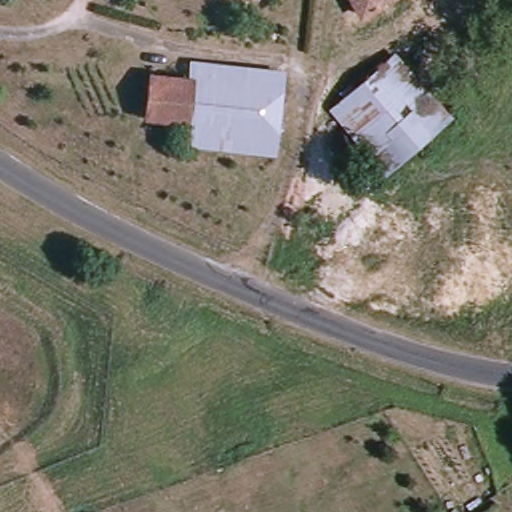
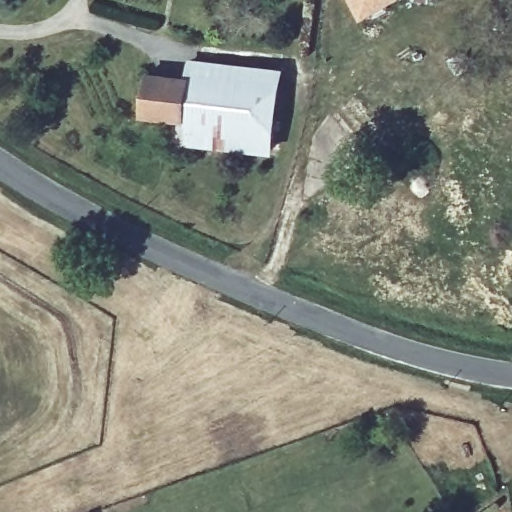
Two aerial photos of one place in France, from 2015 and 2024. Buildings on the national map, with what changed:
unchanged [(371,22),(359,0),(403,0),(406,4),(371,22)]
demolished [(448,119),(388,173),(332,110),(391,58),(396,64),(414,47),(442,78),(425,93),(448,119)]
unchanged [(189,81),(191,66),(276,76),(267,152),(182,142),(185,121),(189,81)]
unchanged [(150,76),(189,81),(185,121),(144,116),(150,76)]

